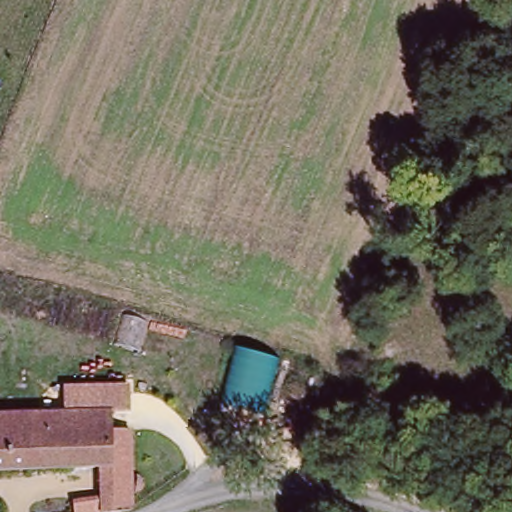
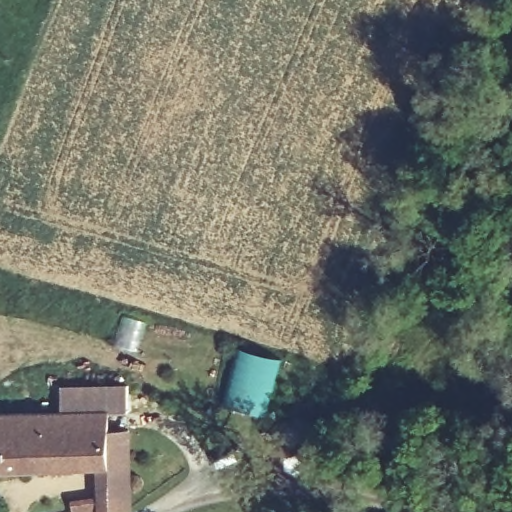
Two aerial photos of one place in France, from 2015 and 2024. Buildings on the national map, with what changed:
unchanged [(281,358),(270,414),(222,403),(236,344),(281,358)]
unchanged [(128,384),(128,411),(112,410),(111,418),(63,416),(62,386),(128,384)]
unchanged [(0,470),(0,415),(111,418),(110,434),(108,473),(103,473),(0,470)]
unchanged [(103,473),(108,473),(110,434),(136,436),(133,496),(100,495),(103,473)]
unchanged [(135,512),(75,512),(72,499),(100,499),(100,495),(133,496),(135,512)]

